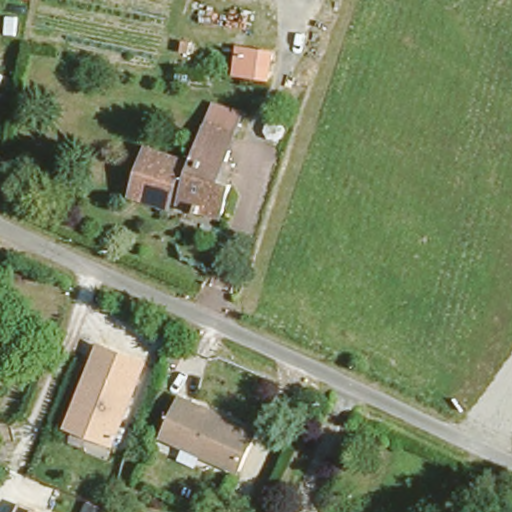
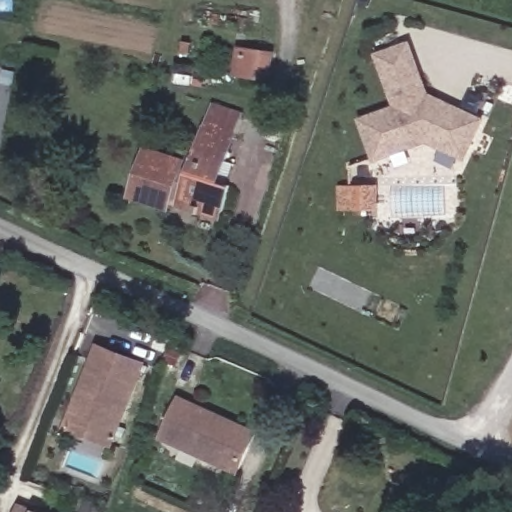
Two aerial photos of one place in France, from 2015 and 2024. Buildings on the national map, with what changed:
unchanged [(271,74),(238,68),(240,57),(244,38),(277,44),(273,63),(271,74)]
new [(375,162),(359,118),(394,106),(376,53),(413,39),(431,91),(487,118),(467,161),(428,143),(375,162)]
unchanged [(216,216),(176,203),(178,197),(168,194),(166,201),(129,189),(146,138),(183,151),(180,158),(190,162),(203,124),(211,100),(243,111),(235,134),(227,158),(220,179),(228,182),(216,216)]
unchanged [(115,446),(66,428),(100,342),(150,361),(115,446)]
unchanged [(239,477),(159,440),(179,395),(259,432),(239,477)]
unchanged [(47,512),(16,512),(20,501),(47,512)]

